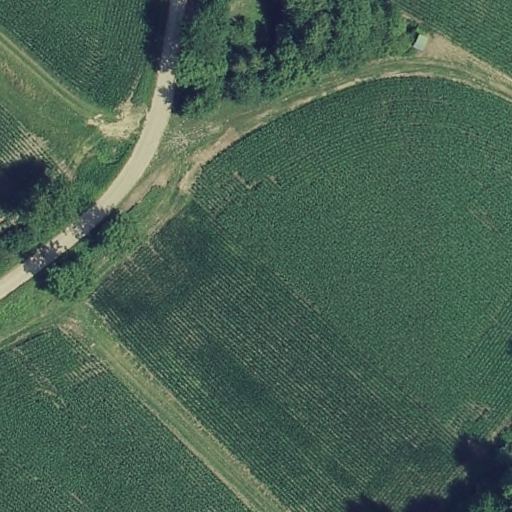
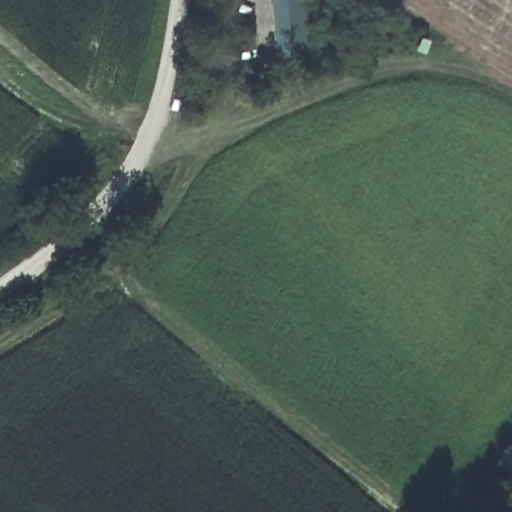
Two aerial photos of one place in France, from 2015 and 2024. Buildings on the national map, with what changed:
unchanged [(266,0),(303,0),(305,41),(275,46),(266,0)]

